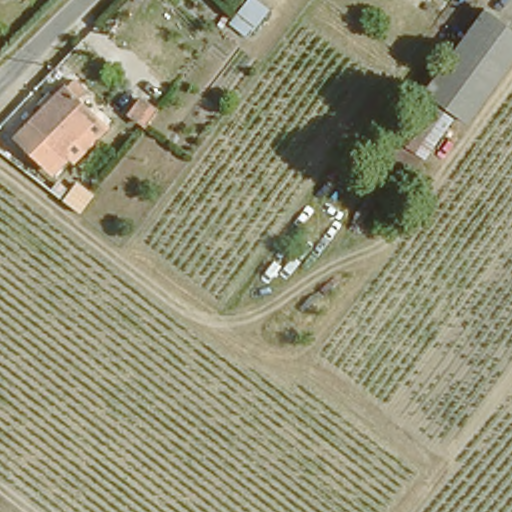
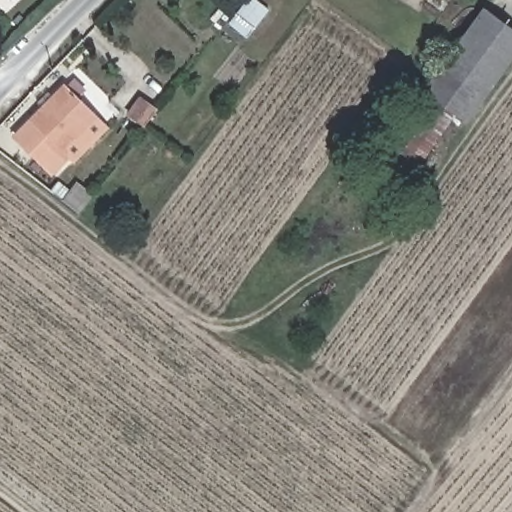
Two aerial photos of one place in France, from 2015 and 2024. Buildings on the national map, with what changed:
unchanged [(249,40),(227,25),(245,0),(258,0),(271,9),(249,40)]
unchanged [(445,2),(438,12),(428,5),(432,0),(442,0),(445,2)]
unchanged [(481,9),(512,31),(512,55),(463,121),(451,112),(422,91),(481,9)]
unchanged [(70,162),(65,156),(49,172),(14,137),(41,109),(36,104),(47,93),(52,98),(63,87),(64,88),(71,81),(82,93),(76,100),(104,128),(70,162)]
unchanged [(451,112),(397,186),(367,166),(422,91),(451,112)]
unchanged [(144,126),(129,115),(139,100),(154,111),(144,126)]

